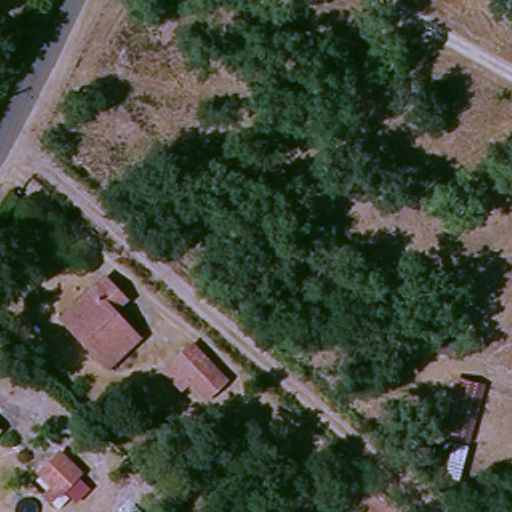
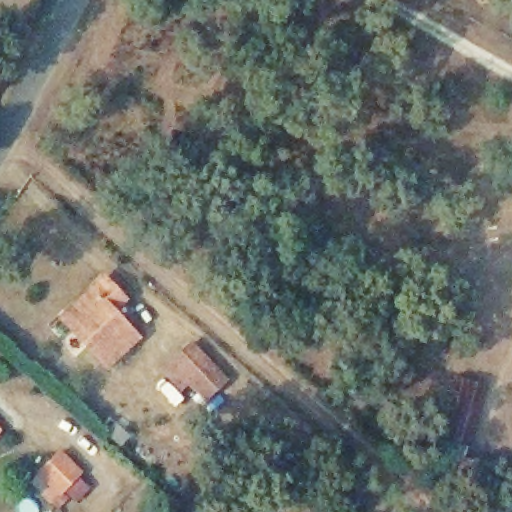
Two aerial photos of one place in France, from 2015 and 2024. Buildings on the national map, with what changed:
unchanged [(127,297),(115,311),(144,335),(119,365),(63,317),(99,275),(127,297)]
unchanged [(202,339),(237,381),(212,403),(193,383),(185,392),(164,368),(202,339)]
unchanged [(475,445),(465,480),(450,475),(459,441),(444,435),(460,373),(491,382),(475,445)]
unchanged [(0,427),(0,420),(3,422),(0,427)]
unchanged [(67,445),(90,468),(60,501),(48,491),(52,483),(42,472),(67,445)]

